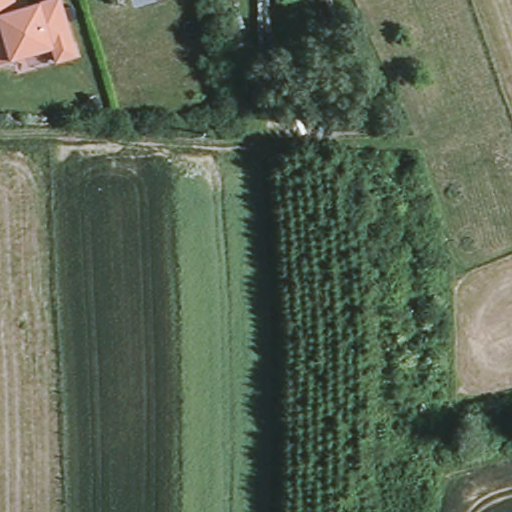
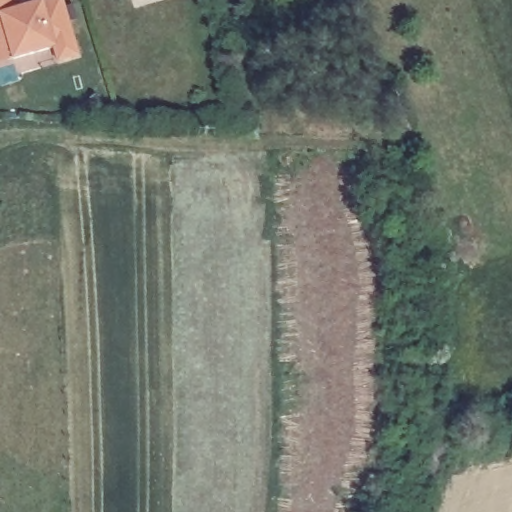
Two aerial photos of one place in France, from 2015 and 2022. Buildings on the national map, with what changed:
unchanged [(16,0),(18,9),(49,0),(62,0),(78,56),(58,63),(53,47),(12,59),(0,63),(0,45),(0,0),(16,0)]

